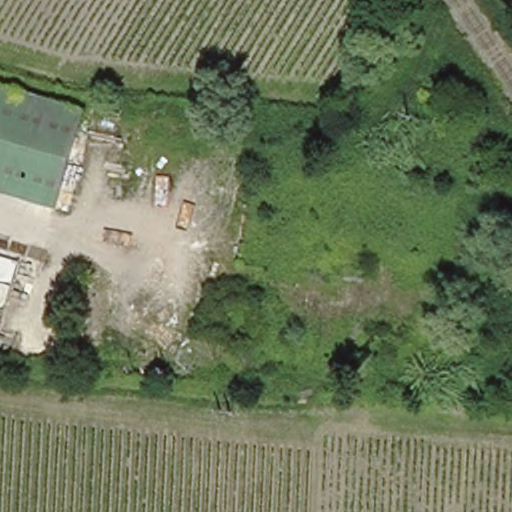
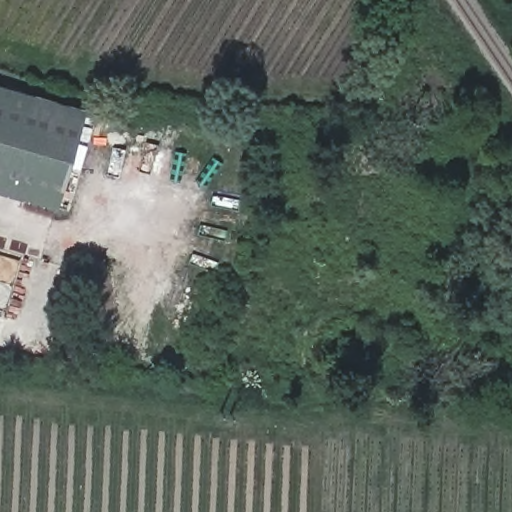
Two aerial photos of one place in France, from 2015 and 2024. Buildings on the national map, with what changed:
unchanged [(80,107),(53,201),(0,186),(0,83),(80,107)]

